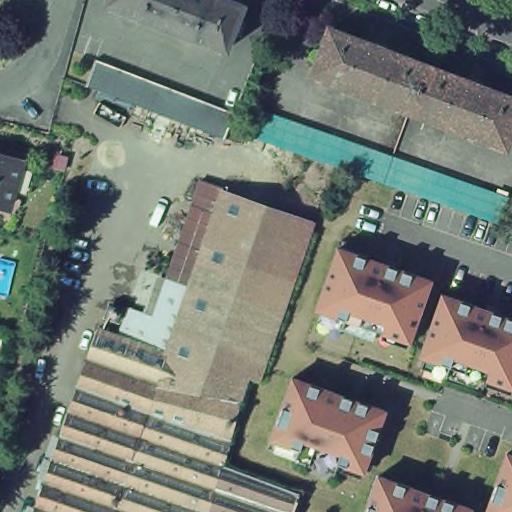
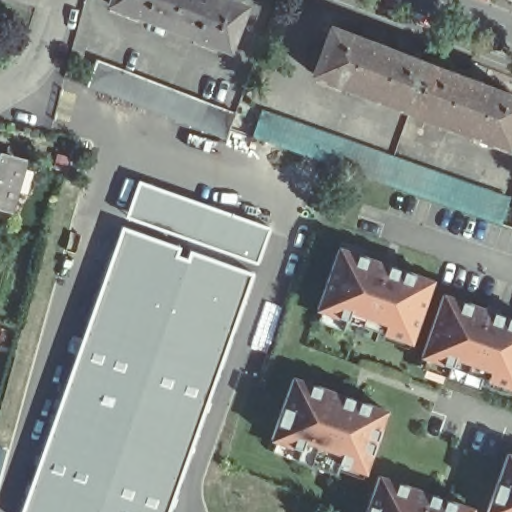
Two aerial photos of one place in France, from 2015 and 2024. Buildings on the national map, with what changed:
unchanged [(111,0),(217,0),(243,10),(226,54),(107,8),(111,0)]
unchanged [(366,45),(367,42),(382,48),(382,50),(462,82),(464,79),(478,85),(477,87),(512,101),(512,120),(501,148),(307,74),(325,29),(366,45)]
unchanged [(90,64),(230,118),(228,123),(224,133),(220,144),(80,90),(90,64)]
unchanged [(510,201),(499,228),(405,195),(359,179),(267,146),(250,140),(260,113),(510,201)]
unchanged [(15,163),(4,205),(0,205),(0,159),(15,163)]
demolished [(125,305),(149,314),(197,177),(222,186),(220,190),(180,305),(164,353),(115,336),(125,305)]
new [(269,227),(254,264),(127,217),(140,180),(269,227)]
demolished [(309,221),(290,275),(268,337),(180,305),(220,190),(309,221)]
new [(169,512),(22,512),(122,225),(252,274),(169,512)]
unchanged [(412,346),(316,311),(339,248),(435,280),(412,346)]
unchanged [(443,292),(512,317),(512,391),(422,359),(443,292)]
demolished [(180,305),(268,337),(224,463),(304,492),(297,512),(109,512),(164,353),(180,305)]
demolished [(109,512),(27,512),(92,327),(115,336),(164,353),(109,512)]
unchanged [(364,477),(339,468),(337,475),(300,462),(303,452),(270,443),(291,376),(387,408),(364,477)]
unchanged [(512,454),(512,512),(487,512),(507,452),(512,454)]
unchanged [(364,512),(377,473),(477,507),(476,512),(364,512)]

